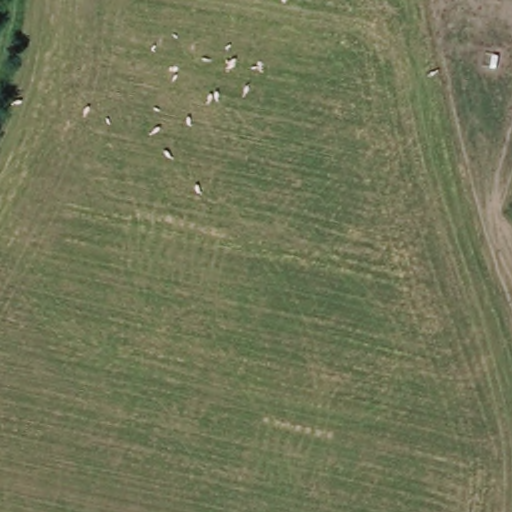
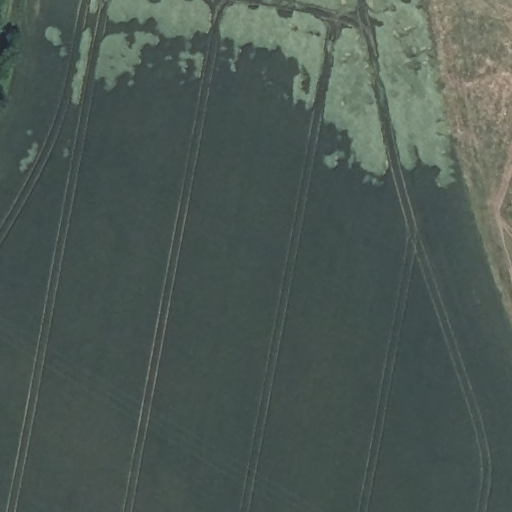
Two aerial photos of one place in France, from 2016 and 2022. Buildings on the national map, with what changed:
[]

